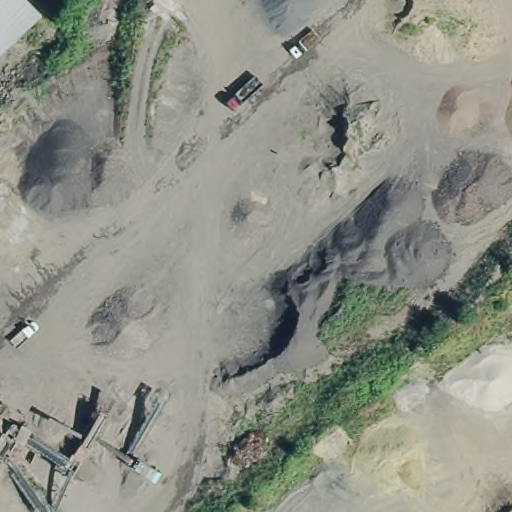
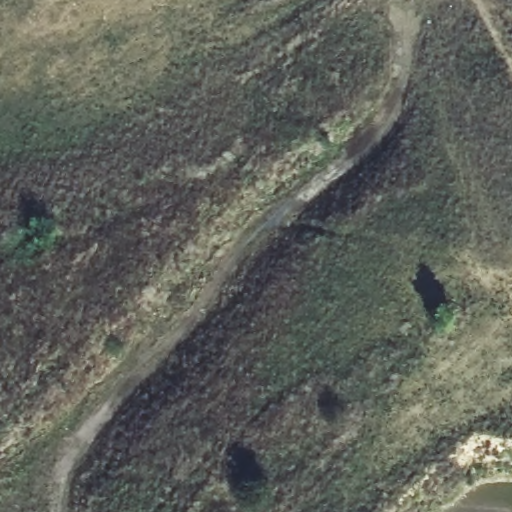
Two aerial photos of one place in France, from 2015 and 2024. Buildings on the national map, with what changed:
demolished [(0,63),(0,0),(28,0),(47,20),(0,63)]

